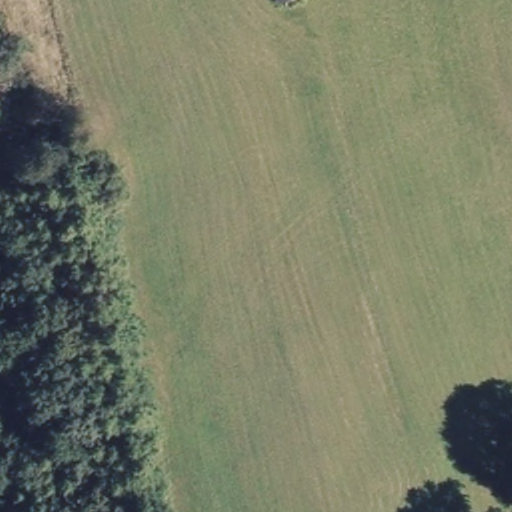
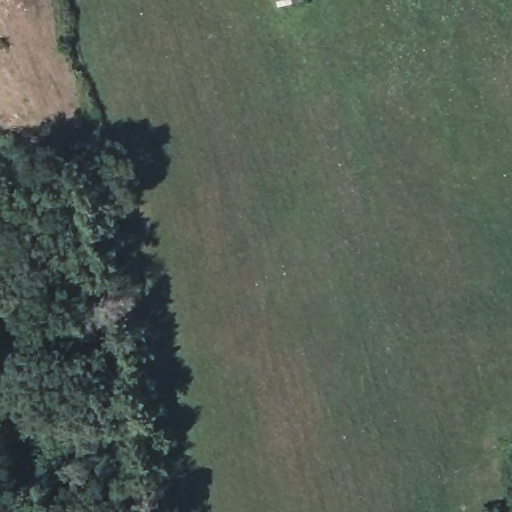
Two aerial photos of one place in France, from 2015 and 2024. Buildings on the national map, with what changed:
unchanged [(284,7),(281,0),(302,0),(284,7)]

